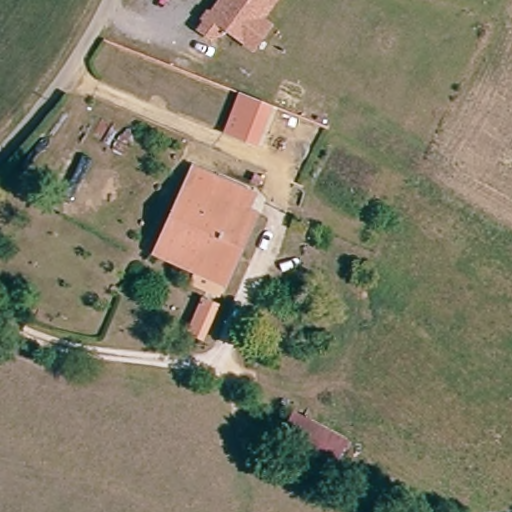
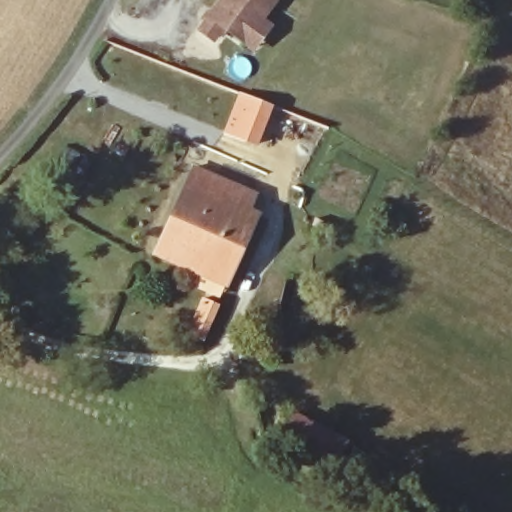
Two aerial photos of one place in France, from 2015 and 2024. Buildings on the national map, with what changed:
unchanged [(278,28),(255,51),(233,35),(214,41),(196,26),(209,9),(212,11),(221,0),(280,0),(267,20),(278,28)]
unchanged [(251,98),(281,110),(266,149),(235,136),(251,98)]
unchanged [(158,252),(196,165),(256,188),(247,212),(252,214),(227,280),(158,252)]
unchanged [(195,284),(199,271),(227,282),(222,295),(195,284)]
unchanged [(191,342),(204,305),(217,309),(206,342),(191,342)]
unchanged [(295,416),(349,442),(338,465),(284,439),(295,416)]

